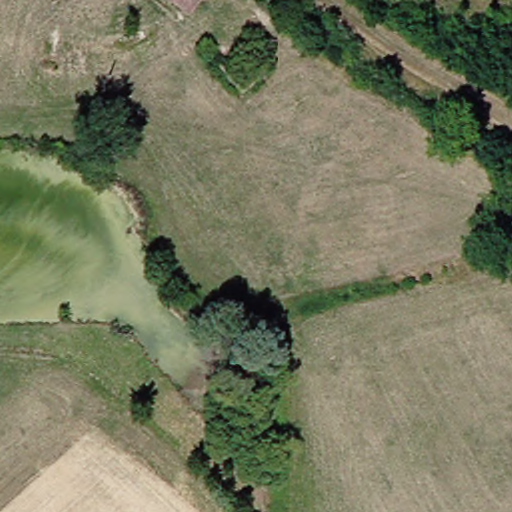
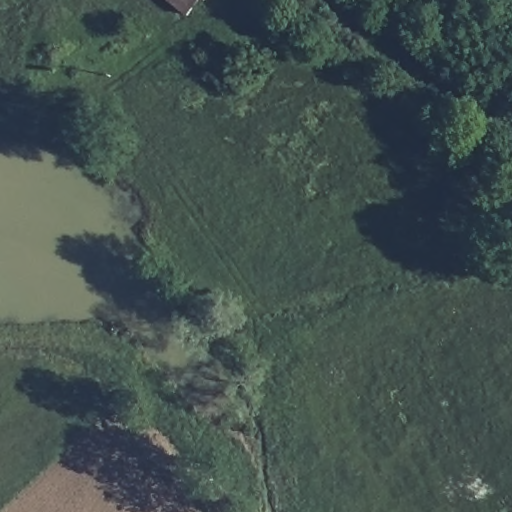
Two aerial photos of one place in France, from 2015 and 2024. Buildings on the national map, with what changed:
unchanged [(179,14),(161,0),(191,0),(179,14)]

